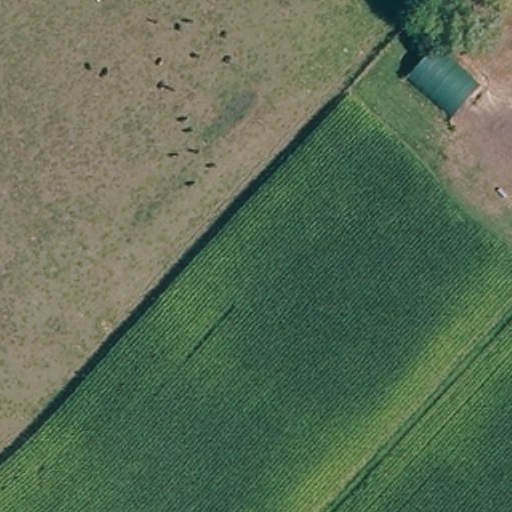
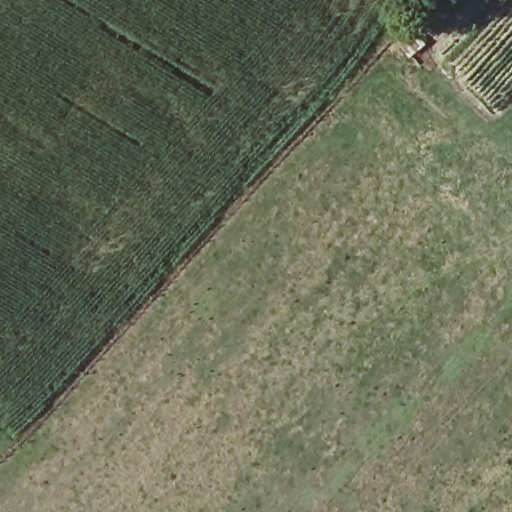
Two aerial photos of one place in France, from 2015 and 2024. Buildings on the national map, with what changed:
demolished [(482,83),(455,119),(407,77),(436,42),(482,83)]

